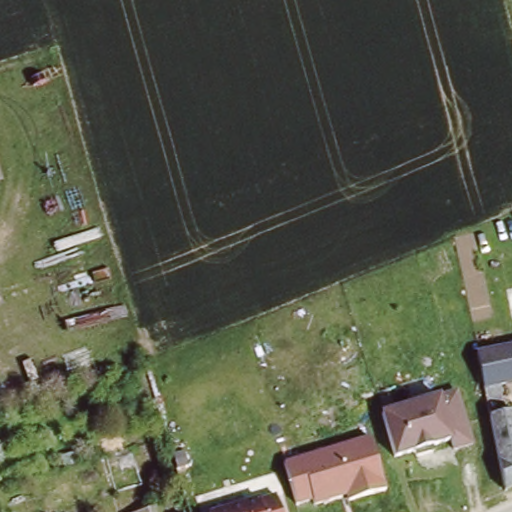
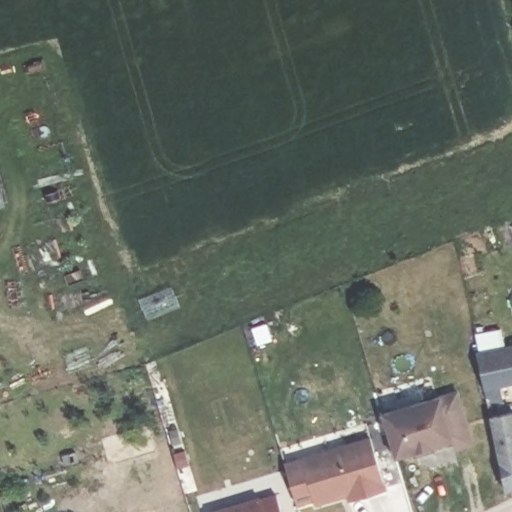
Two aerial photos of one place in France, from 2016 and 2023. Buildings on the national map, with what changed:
unchanged [(481,352),(512,345),(512,382),(498,386),(501,400),(487,403),(476,354),(481,352)]
unchanged [(457,387),(471,443),(454,452),(450,442),(393,460),(379,412),(457,387)]
unchanged [(512,410),(512,488),(501,492),(485,416),(512,410)]
unchanged [(387,490),(350,501),(350,496),(313,506),(311,502),(296,506),(284,460),(371,436),(387,490)]
unchanged [(278,487),(284,512),(206,512),(278,487)]
unchanged [(157,503),(161,512),(135,512),(157,503)]

